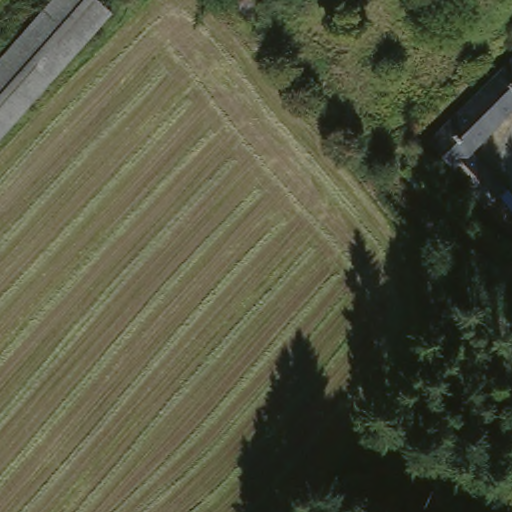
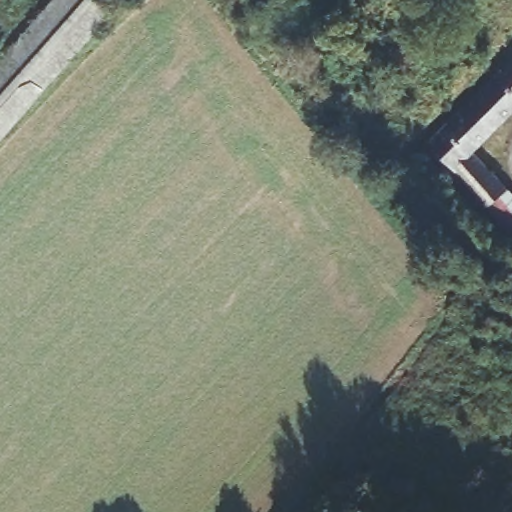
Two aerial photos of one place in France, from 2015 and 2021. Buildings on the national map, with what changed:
unchanged [(63,0),(110,0),(121,10),(0,147),(0,72),(63,0)]
unchanged [(512,65),(512,70),(510,67),(512,65)]
unchanged [(483,192),(484,191),(439,139),(490,88),(510,67),(512,70),(512,102),(466,146),(475,157),(472,159),(493,182),(512,204),(512,212),(506,219),(483,192)]

